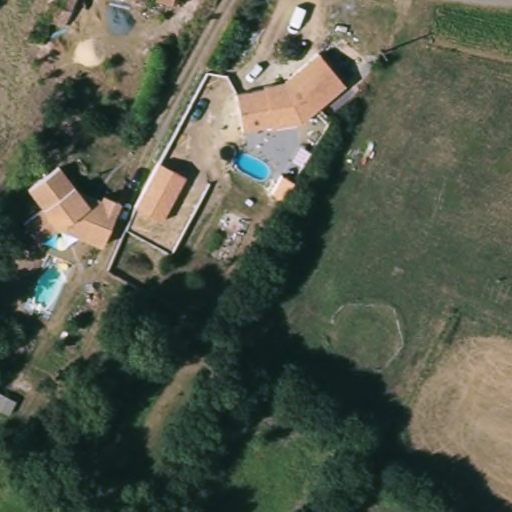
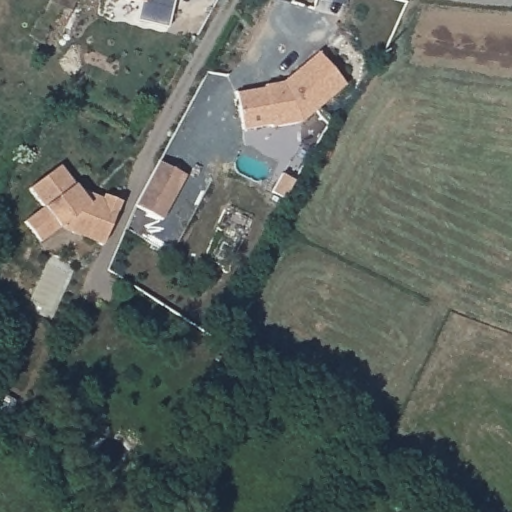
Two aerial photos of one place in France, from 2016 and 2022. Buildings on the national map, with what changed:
unchanged [(45,14),(51,0),(73,0),(65,20),(45,14)]
unchanged [(167,0),(169,0),(169,1),(167,0)]
unchanged [(31,20),(38,22),(63,31),(58,41),(52,45),(26,34),(31,20)]
unchanged [(318,52),(344,86),(299,122),(242,130),(235,92),(283,83),(318,52)]
unchanged [(136,207),(161,162),(185,176),(162,221),(136,207)]
unchanged [(23,222),(42,208),(30,189),(60,167),(76,187),(101,200),(103,194),(121,202),(101,246),(60,228),(39,244),(23,222)]

